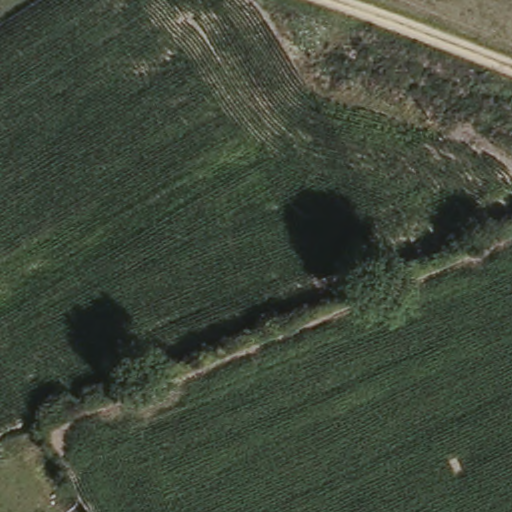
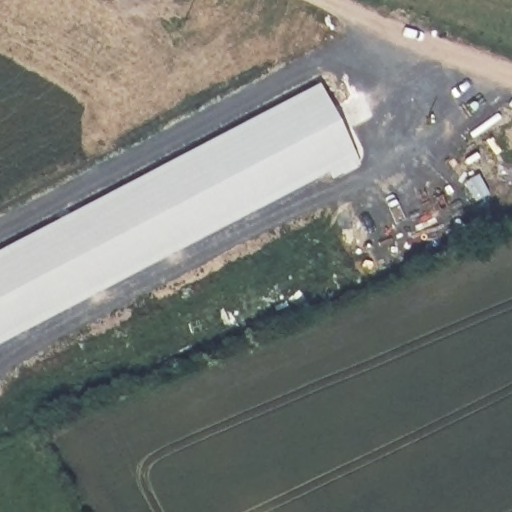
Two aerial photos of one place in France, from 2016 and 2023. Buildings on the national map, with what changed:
new [(372,158),(0,368),(0,255),(329,77),(372,158)]

